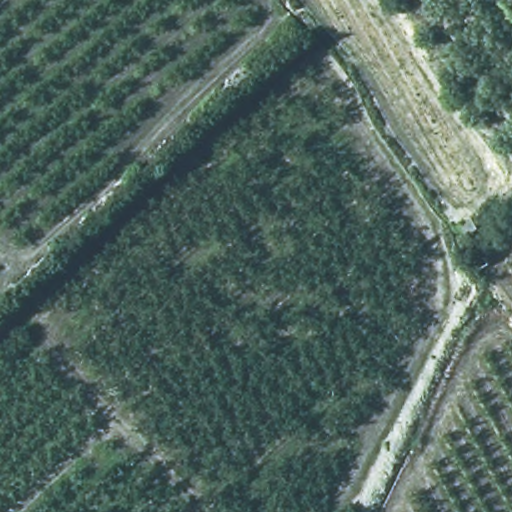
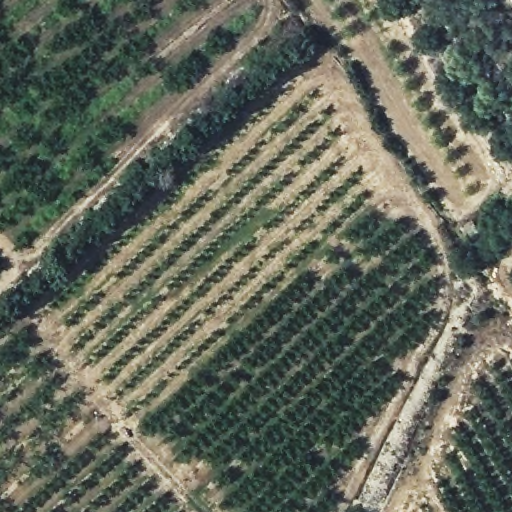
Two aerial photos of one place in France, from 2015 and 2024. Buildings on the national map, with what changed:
unchanged [(478,228),(468,236),(457,222),(469,214),(478,228)]

